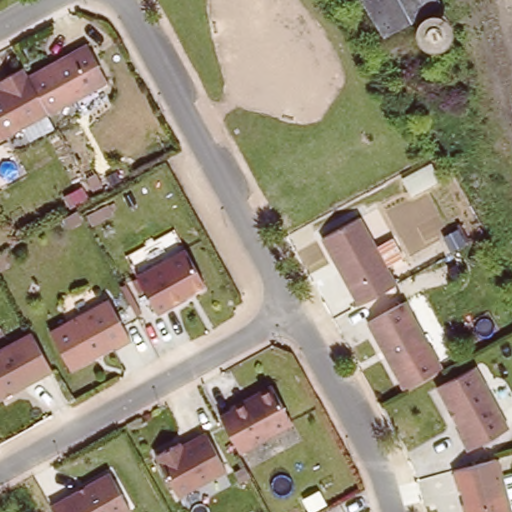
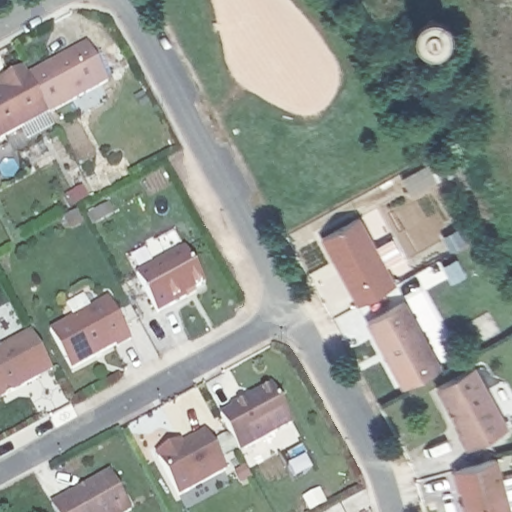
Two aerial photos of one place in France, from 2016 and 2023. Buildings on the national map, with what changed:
demolished [(383,37),(361,0),(434,0),(437,6),(383,37)]
unchanged [(82,49),(103,87),(44,118),(43,117),(23,81),(82,49)]
unchanged [(19,72),(23,81),(43,117),(0,141),(0,82),(1,81),(19,72)]
unchanged [(394,288),(356,309),(318,243),(356,221),(394,288)]
unchanged [(205,289),(185,300),(187,303),(157,319),(137,281),(186,254),(205,289)]
unchanged [(126,346),(112,354),(110,351),(65,375),(45,337),(104,305),(126,346)]
unchanged [(402,305),(438,372),(400,393),(365,325),(402,305)]
unchanged [(0,404),(0,354),(32,337),(52,376),(0,404)]
unchanged [(472,371),(507,432),(467,455),(457,438),(460,437),(435,392),(472,371)]
unchanged [(229,414),(228,412),(243,404),(245,406),(255,401),(253,399),(268,390),(289,428),(235,457),(217,421),(229,414)]
unchanged [(177,447),(178,451),(203,438),(223,475),(175,501),(153,460),(170,451),(177,447)]
unchanged [(509,512),(464,512),(459,494),(457,494),(452,475),(495,462),(509,512)]
unchanged [(128,512),(51,512),(50,511),(108,478),(128,512)]

